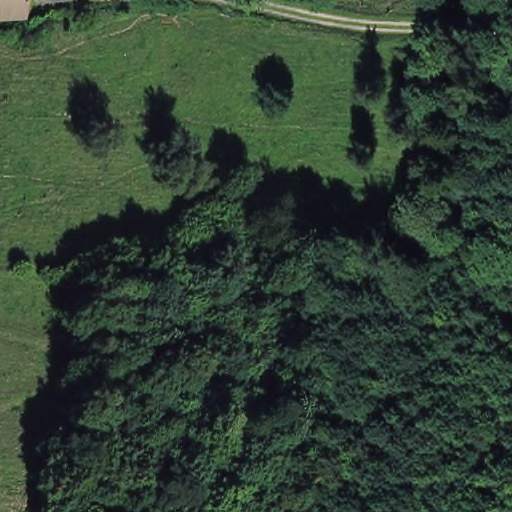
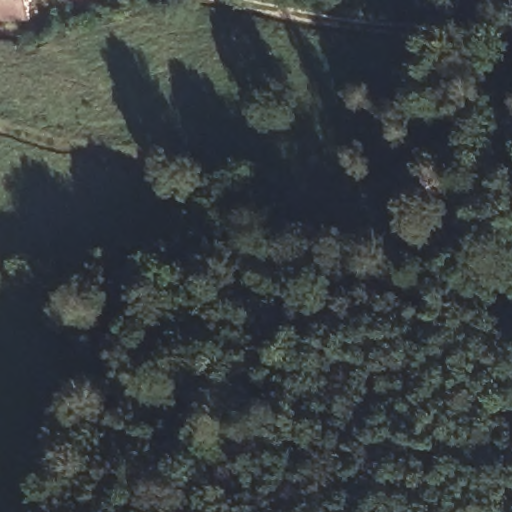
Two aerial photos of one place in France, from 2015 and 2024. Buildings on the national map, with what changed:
unchanged [(22,12),(0,13),(0,0),(21,0),(22,12)]
unchanged [(66,19),(52,18),(24,17),(21,17),(0,18),(0,13),(22,12),(21,0),(68,0),(66,19)]

